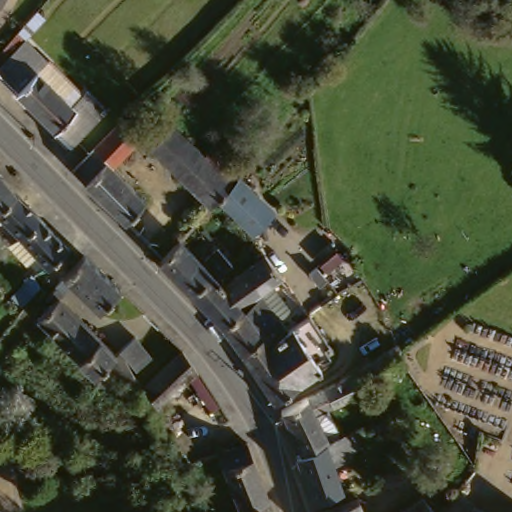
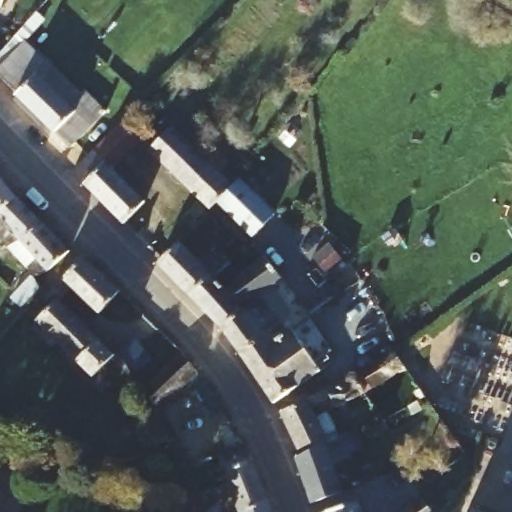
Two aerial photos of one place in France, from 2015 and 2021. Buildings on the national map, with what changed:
unchanged [(0,77),(0,64),(21,42),(44,64),(37,72),(67,104),(83,92),(100,110),(64,145),(0,77)]
unchanged [(121,124),(141,144),(114,172),(93,153),(121,124)]
unchanged [(179,129),(198,149),(241,192),(226,208),(221,212),(159,149),(179,129)]
unchanged [(125,224),(108,208),(101,201),(72,174),(93,153),(114,172),(124,182),(129,188),(146,203),(125,224)]
unchanged [(0,174),(19,197),(0,212),(0,174)]
unchanged [(241,192),(248,185),(280,215),(258,239),(226,208),(241,192)]
unchanged [(0,220),(0,212),(19,197),(42,221),(19,241),(0,220)]
unchanged [(32,270),(11,248),(14,247),(19,241),(42,221),(70,250),(50,269),(35,278),(32,270)]
unchanged [(193,229),(206,243),(194,254),(211,272),(186,296),(155,265),(159,260),(193,229)]
unchanged [(211,272),(218,278),(226,285),(260,259),(278,282),(269,289),(216,328),(186,296),(211,272)]
unchanged [(96,316),(61,282),(81,262),(116,296),(96,316)]
unchanged [(111,379),(106,369),(100,359),(88,372),(28,313),(41,297),(37,293),(46,282),(55,289),(51,295),(109,349),(114,348),(126,372),(111,379)]
unchanged [(269,289),(288,314),(274,324),(282,334),(264,347),(257,339),(236,354),(216,328),(269,289)]
unchanged [(257,339),(264,347),(282,334),(303,319),(325,348),(314,357),(323,369),(273,405),(236,354),(257,339)]
unchanged [(129,363),(114,344),(129,332),(144,351),(129,363)]
unchanged [(351,378),(394,349),(396,353),(394,356),(401,367),(361,394),(334,408),(326,391),(351,378)]
unchanged [(147,407),(134,388),(177,352),(191,371),(147,407)]
unchanged [(326,391),(334,408),(318,417),(329,439),(333,437),(334,441),(302,456),(281,413),(326,391)]
unchanged [(334,441),(349,434),(356,453),(349,455),(351,460),(332,467),(341,494),(309,504),(296,459),(302,456),(334,441)]
unchanged [(236,511),(215,458),(244,446),(266,501),(236,511)]
unchanged [(420,497),(425,504),(431,501),(436,509),(432,512),(399,512),(420,497)]
unchanged [(358,499),(361,512),(314,512),(358,499)]
unchanged [(236,511),(266,501),(270,512),(236,512),(236,511)]
unchanged [(467,508),(474,506),(475,512),(469,512),(467,508)]

